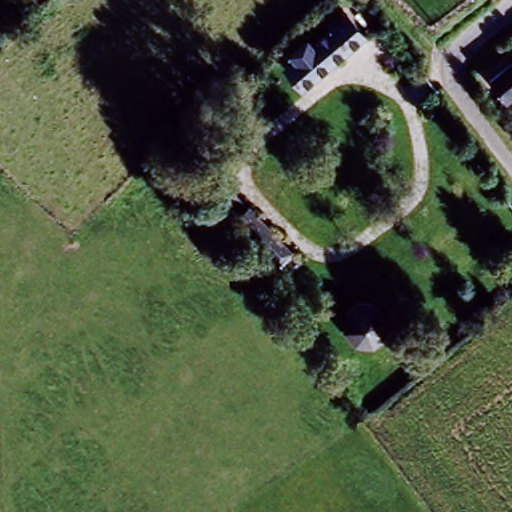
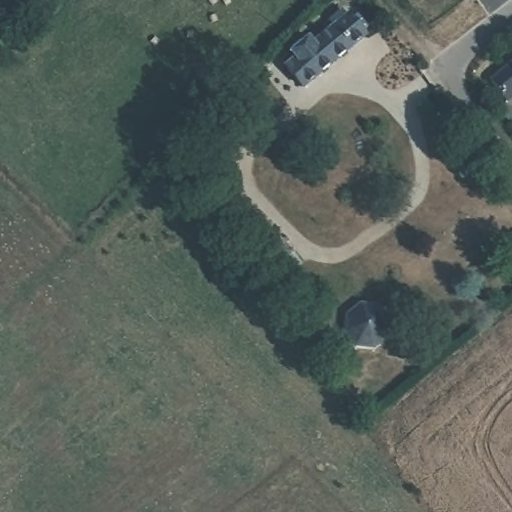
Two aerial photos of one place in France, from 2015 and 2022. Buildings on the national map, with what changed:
unchanged [(278,64),(344,17),(363,40),(297,86),(278,64)]
unchanged [(503,100),(487,77),(512,59),(512,94),(503,100)]
unchanged [(246,252),(255,245),(240,227),(229,215),(250,199),(297,258),(278,274),(269,281),(246,252)]
unchanged [(387,315),(385,332),(371,345),(353,343),(342,330),(342,321),(343,310),(360,301),(377,302),(387,315)]

